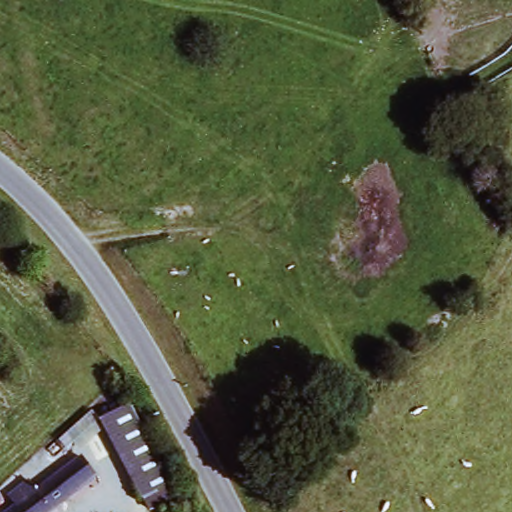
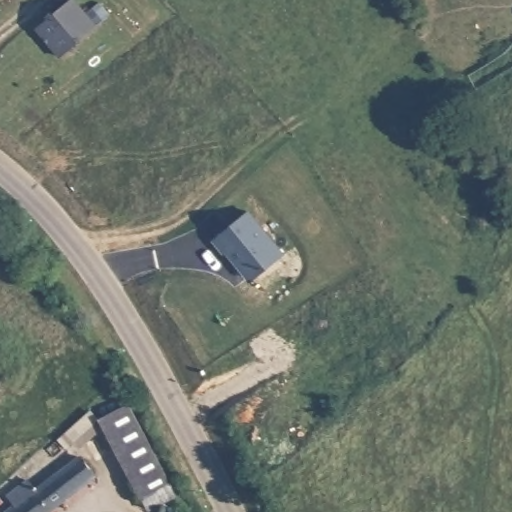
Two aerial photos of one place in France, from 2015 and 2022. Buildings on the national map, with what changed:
new [(72,0),(74,0),(97,28),(62,57),(38,29),(72,0)]
new [(248,213),(283,256),(254,279),(247,279),(226,253),(224,255),(213,242),(248,213)]
unchanged [(142,493),(102,415),(130,401),(170,479),(177,492),(150,506),(142,493)]
unchanged [(67,445),(59,435),(90,408),(99,418),(67,445)]
unchanged [(37,487),(82,452),(96,472),(44,512),(7,512),(5,511),(17,502),(10,493),(30,477),(37,487)]

